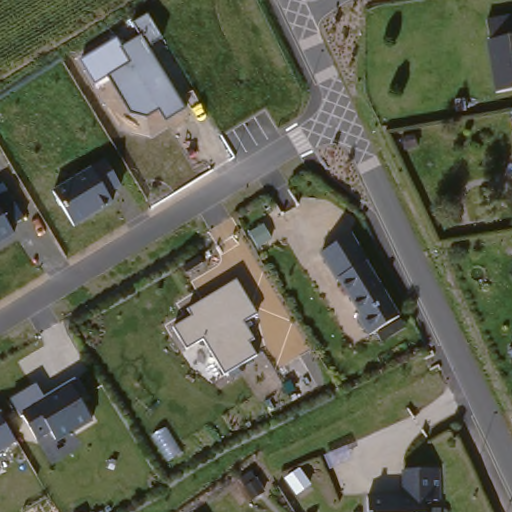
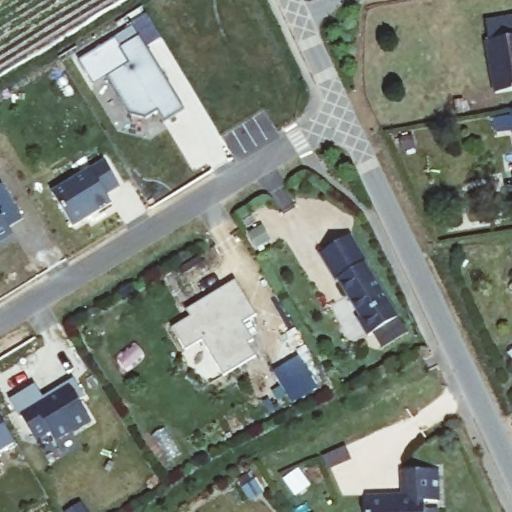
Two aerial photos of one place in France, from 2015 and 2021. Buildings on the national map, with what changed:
unchanged [(165,121),(159,110),(144,118),(129,112),(107,75),(93,84),(81,62),(119,40),(122,47),(139,37),(133,22),(148,14),(161,39),(148,48),(185,110),(165,121)]
unchanged [(488,42),(484,22),(512,19),(512,92),(489,95),(481,43),(488,42)]
unchanged [(104,197),(109,204),(72,227),(50,193),(101,161),(119,187),(104,197)]
unchanged [(0,243),(0,222),(11,237),(0,243)]
unchanged [(369,333),(319,254),(346,234),(396,316),(369,333)]
unchanged [(224,375),(202,340),(186,348),(174,326),(193,316),(189,310),(236,283),(256,314),(241,322),(252,338),(247,342),(256,356),(224,375)]
unchanged [(53,443),(47,434),(35,441),(9,401),(33,386),(44,402),(69,385),(90,420),(53,443)]
unchanged [(0,450),(0,419),(14,441),(0,450)]
unchanged [(402,498),(401,475),(436,473),(437,504),(424,504),(424,512),(367,512),(367,500),(402,498)]

